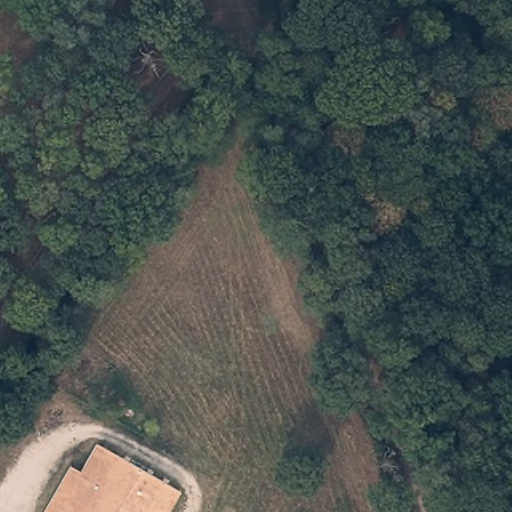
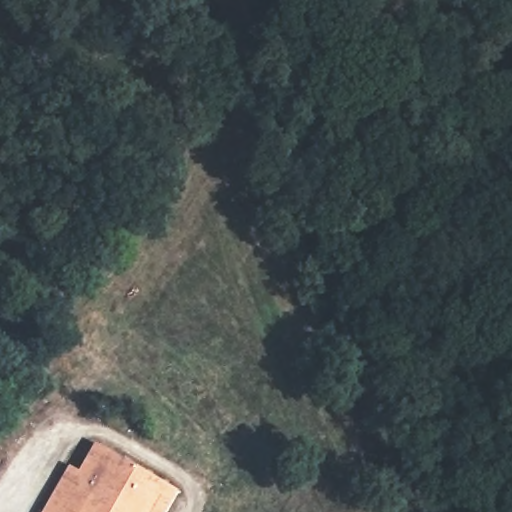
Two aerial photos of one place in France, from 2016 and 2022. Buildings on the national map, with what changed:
unchanged [(81,468),(97,441),(177,489),(164,512),(42,512),(71,462),(81,468)]

